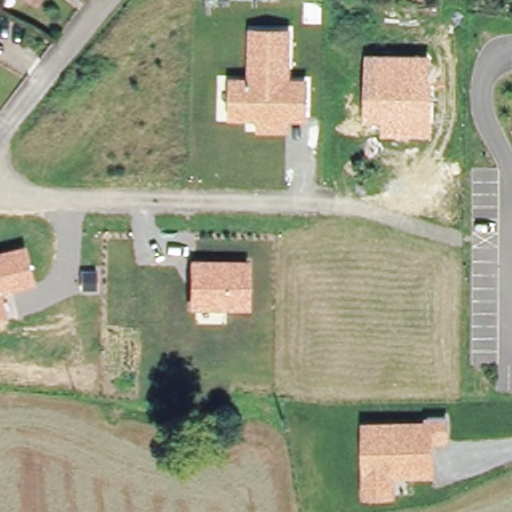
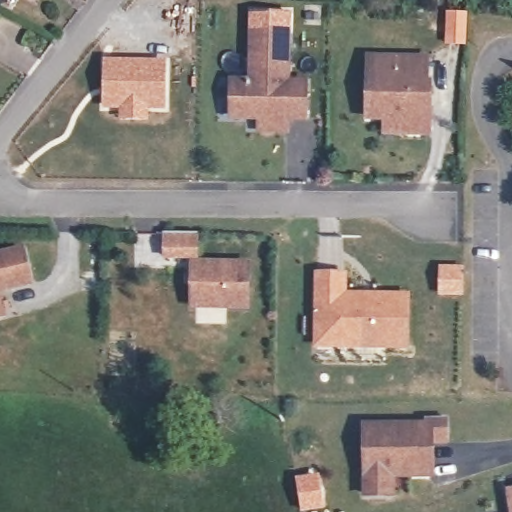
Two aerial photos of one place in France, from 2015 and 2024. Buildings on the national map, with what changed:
unchanged [(27,6),(14,0),(30,0),(27,6)]
unchanged [(246,76),(247,27),(290,29),(292,78),(308,79),(308,122),(288,121),(288,131),(257,133),(257,121),(229,121),(228,78),(246,76)]
unchanged [(430,53),(432,135),(382,136),(382,121),(363,122),(364,53),(430,53)]
new [(102,58),(167,56),(167,110),(149,110),(148,119),(119,119),(119,108),(102,108),(102,58)]
unchanged [(162,260),(162,233),(198,233),(198,260),(190,260),(162,260)]
unchanged [(24,244),(34,283),(0,292),(0,250),(24,244)]
unchanged [(251,311),(189,310),(190,260),(251,261),(251,311)]
new [(312,348),(314,271),(347,272),(347,291),(409,292),(408,349),(312,348)]
unchanged [(6,317),(0,319),(0,292),(6,317)]
unchanged [(448,444),(436,444),(435,478),(396,478),(396,498),(362,498),(362,422),(426,421),(426,418),(449,418),(448,444)]

